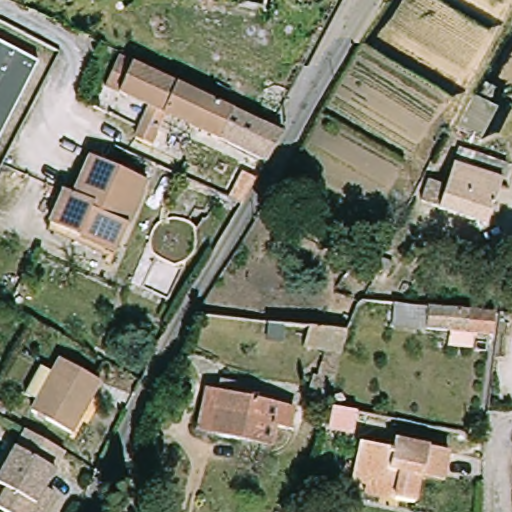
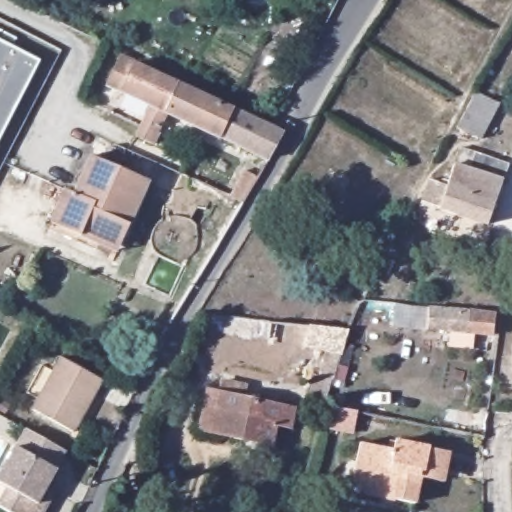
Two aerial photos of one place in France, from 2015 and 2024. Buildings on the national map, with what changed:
unchanged [(0,150),(0,41),(45,64),(0,150)]
unchanged [(156,145),(140,137),(145,126),(154,105),(102,79),(116,51),(183,83),(245,111),(288,130),(272,156),(268,155),(225,136),(224,137),(169,112),(160,132),(161,133),(156,145)]
unchanged [(503,105),(483,138),(458,125),(479,90),(503,105)]
unchanged [(433,179),(443,183),(446,177),(451,179),(465,146),(512,164),(512,167),(490,225),(425,200),(433,179)]
unchanged [(85,234),(56,222),(70,189),(79,192),(95,155),(153,178),(145,197),(135,221),(127,241),(123,249),(85,234)]
unchanged [(497,336),(394,326),(397,304),(499,315),(497,336)]
unchanged [(318,372),(326,351),(305,343),(313,322),(350,327),(334,378),(326,401),(305,397),(311,378),(314,372),(318,372)]
unchanged [(104,381),(96,395),(94,393),(80,417),(82,419),(75,431),(36,410),(42,399),(30,392),(45,366),(57,372),(65,359),(104,381)]
unchanged [(216,394),(234,397),(235,391),(243,392),(241,399),(300,412),(296,433),(280,431),(276,451),(207,436),(216,394)]
unchanged [(357,411),(353,431),(327,427),(333,406),(357,411)]
unchanged [(17,512),(6,506),(16,488),(4,482),(32,431),(70,452),(52,486),(60,491),(48,512),(17,512)]
unchanged [(372,485),(358,482),(362,465),(366,446),(399,452),(401,443),(456,455),(451,478),(428,473),(421,505),(402,501),(370,495),(372,485)]

